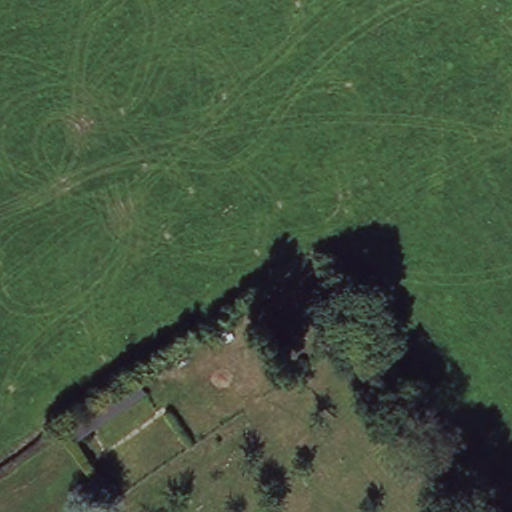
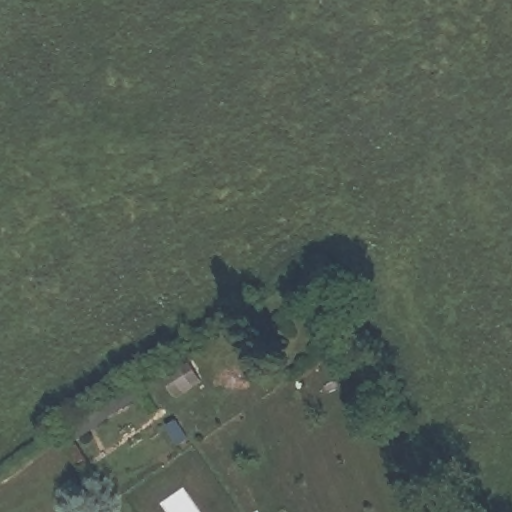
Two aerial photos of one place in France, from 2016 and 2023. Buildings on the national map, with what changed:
unchanged [(149,365),(158,380),(143,390),(91,425),(90,422),(81,408),(149,365)]

